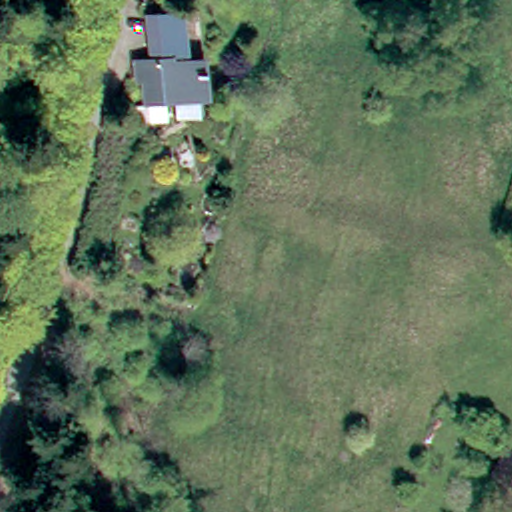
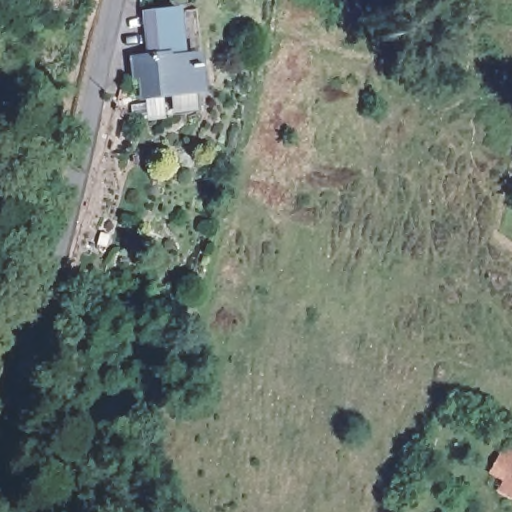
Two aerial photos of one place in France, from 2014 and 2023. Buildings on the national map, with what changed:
unchanged [(143,16),(178,11),(183,64),(197,61),(201,93),(140,100),(137,77),(130,78),(128,58),(146,56),(143,16)]
new [(502,482),(487,474),(503,447),(512,451),(512,499),(496,491),(502,482)]

